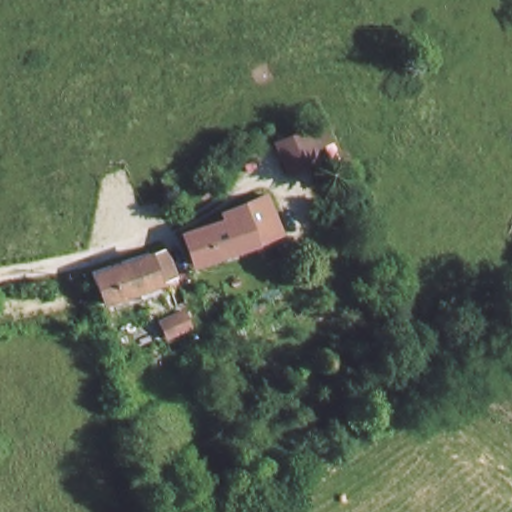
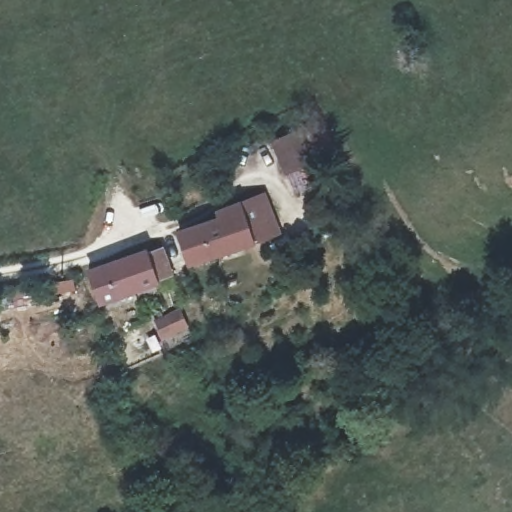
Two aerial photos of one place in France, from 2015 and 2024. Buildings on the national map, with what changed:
unchanged [(319,158),(292,170),(281,142),(306,131),(319,158)]
unchanged [(222,215),(218,208),(254,192),(268,229),(196,261),(188,232),(222,215)]
unchanged [(166,252),(171,277),(101,292),(91,267),(166,252)]

